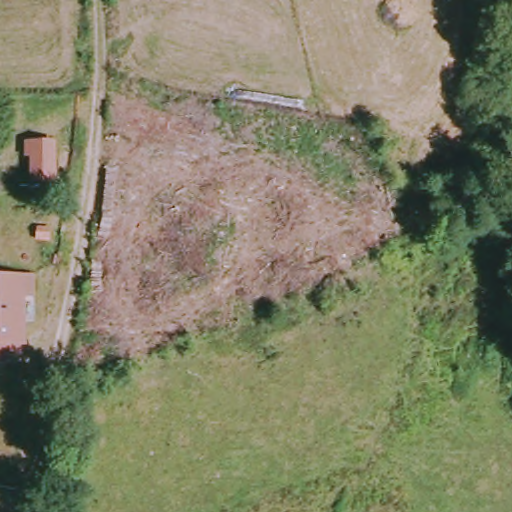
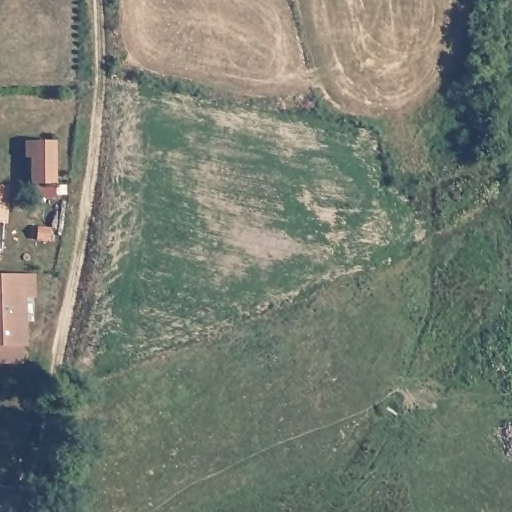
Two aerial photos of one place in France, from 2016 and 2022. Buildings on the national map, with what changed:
unchanged [(53,184),(33,183),(33,154),(28,154),(28,144),(34,144),(52,144),(53,184)]
unchanged [(0,370),(0,280),(33,280),(34,304),(24,303),(22,352),(16,352),(16,371),(0,370)]

